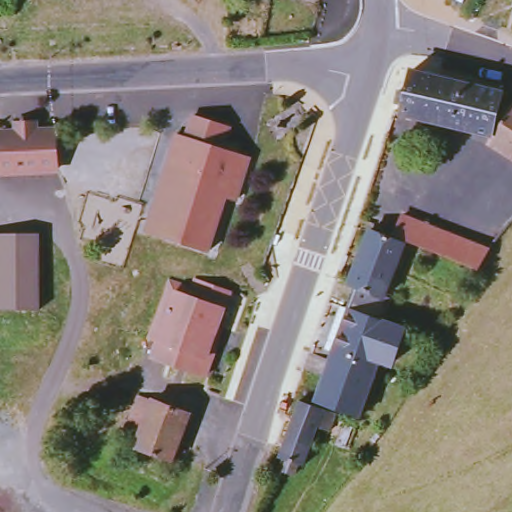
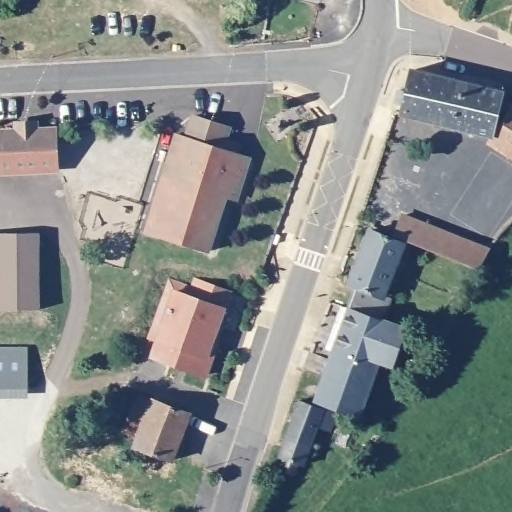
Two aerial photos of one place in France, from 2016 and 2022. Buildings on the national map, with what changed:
unchanged [(512,2),(508,0),(512,0),(512,2)]
unchanged [(404,119),(412,74),(503,94),(503,99),(495,139),(404,119)]
unchanged [(495,139),(503,99),(512,105),(512,156),(494,146),(495,139)]
unchanged [(191,144),(194,122),(231,127),(229,140),(246,144),(244,153),(256,155),(255,161),(248,195),(231,191),(215,248),(143,232),(149,212),(153,197),(173,139),(191,144)]
unchanged [(63,175),(43,176),(29,177),(5,179),(3,141),(3,138),(3,137),(20,136),(19,128),(43,127),(43,135),(61,134),(61,138),(63,155),(63,175)]
unchanged [(401,238),(411,215),(460,234),(450,255),(401,238)]
unchanged [(450,255),(460,234),(483,243),(493,228),(511,236),(491,272),(450,255)]
unchanged [(361,260),(358,259),(368,231),(405,246),(394,272),(361,260)]
unchanged [(41,314),(0,316),(0,238),(40,240),(41,314)]
unchanged [(356,287),(349,285),(358,259),(361,260),(394,272),(391,282),(403,290),(397,305),(389,302),(386,312),(351,302),(356,287)]
unchanged [(228,348),(215,382),(161,363),(166,346),(154,341),(173,283),(199,293),(203,283),(235,296),(224,326),(234,331),(228,348)]
unchanged [(341,409),(323,403),(337,352),(331,350),(343,307),(349,309),(351,302),(386,312),(385,321),(408,328),(396,363),(384,359),(364,417),(341,409)]
new [(28,348),(28,399),(0,399),(0,349),(28,348)]
unchanged [(141,451),(124,445),(141,395),(160,401),(141,451)]
unchanged [(201,416),(183,467),(141,451),(160,401),(201,416)]
unchanged [(303,405),(340,413),(336,435),(324,432),(310,472),(304,472),(300,480),(285,475),(289,463),(281,461),(303,405)]

